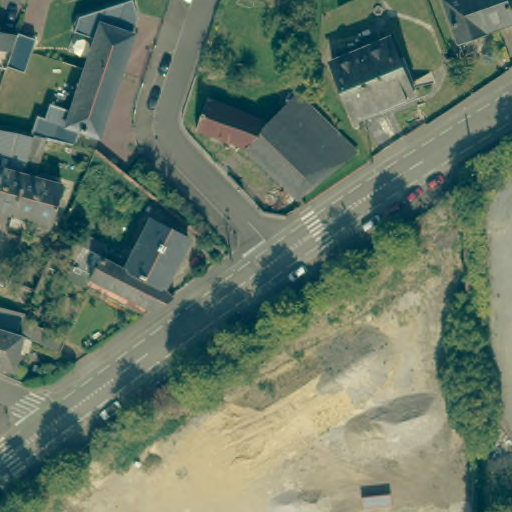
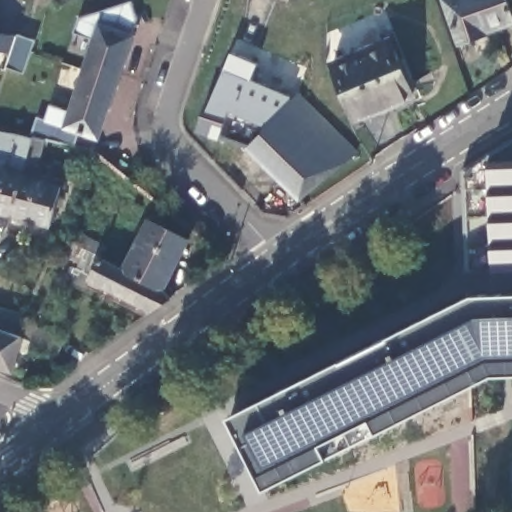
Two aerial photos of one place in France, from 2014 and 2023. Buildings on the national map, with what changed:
unchanged [(509,0),(512,8),(512,23),(490,30),(491,33),(462,43),(446,0),(509,0)]
unchanged [(78,17),(131,2),(138,18),(134,33),(101,22),(95,40),(73,33),(78,17)]
unchanged [(102,129),(100,137),(67,126),(101,22),(134,33),(123,67),(102,129)]
unchanged [(3,26),(2,31),(20,34),(9,67),(0,66),(0,26),(3,26)]
unchanged [(393,37),(416,93),(358,117),(335,62),(393,37)]
unchanged [(204,97),(267,121),(294,93),(353,151),(296,198),(242,145),(193,130),(204,97)]
unchanged [(71,112),(67,126),(78,130),(74,144),(31,134),(36,118),(43,120),(49,105),(71,112)]
unchanged [(13,218),(0,214),(0,133),(34,141),(35,139),(51,143),(72,148),(69,157),(44,151),(38,174),(26,172),(24,179),(13,218)]
new [(468,271),(466,171),(490,154),(512,140),(512,271),(489,271),(468,271)]
unchanged [(24,179),(62,189),(52,228),(13,218),(24,179)]
unchanged [(125,269),(126,268),(151,219),(190,239),(164,288),(125,269)]
unchanged [(66,277),(72,267),(75,261),(54,251),(61,235),(75,242),(80,233),(106,246),(102,256),(126,268),(125,269),(164,288),(173,296),(150,311),(145,308),(89,279),(85,287),(66,277)]
new [(512,293),(512,373),(493,373),(266,489),(230,417),(473,293),(512,293)]
unchanged [(13,332),(19,318),(23,308),(31,311),(27,321),(61,339),(56,352),(29,338),(24,353),(16,351),(11,370),(0,368),(0,329),(13,332)]

